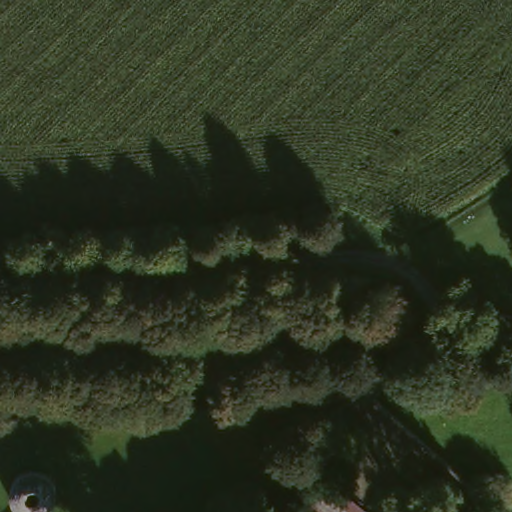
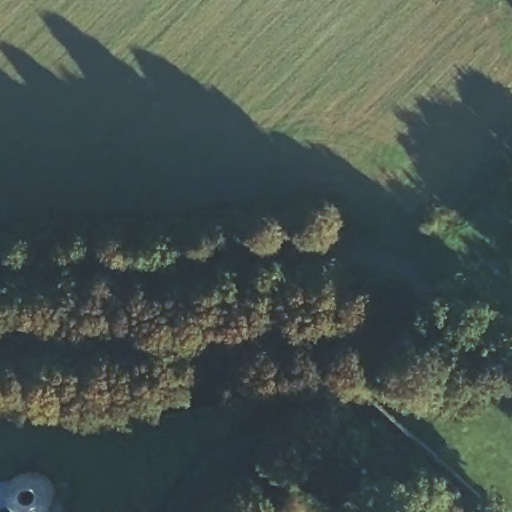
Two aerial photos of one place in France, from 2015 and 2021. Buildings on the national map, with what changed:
unchanged [(57,495),(53,501),(46,505),(40,506),(32,505),(26,501),(22,495),(21,488),(20,487),(22,480),(26,474),(32,470),(40,469),(47,470),(53,474),(57,480),(59,488),(57,495)]
unchanged [(362,512),(323,512),(316,505),(335,486),(362,512)]

